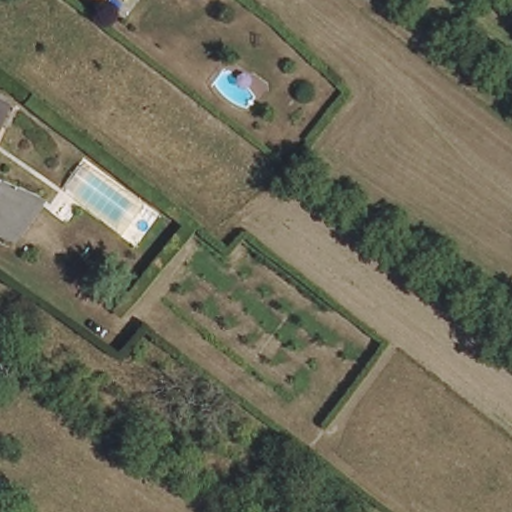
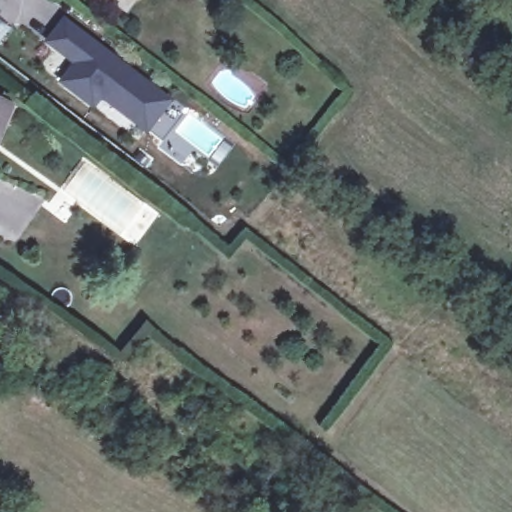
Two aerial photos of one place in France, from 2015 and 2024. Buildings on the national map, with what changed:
new [(147,131),(134,120),(102,96),(94,106),(63,81),(77,62),(49,41),(66,20),(115,57),(112,60),(119,66),(121,62),(157,90),(170,101),(147,131)]
unchanged [(0,156),(0,101),(19,109),(0,156)]

